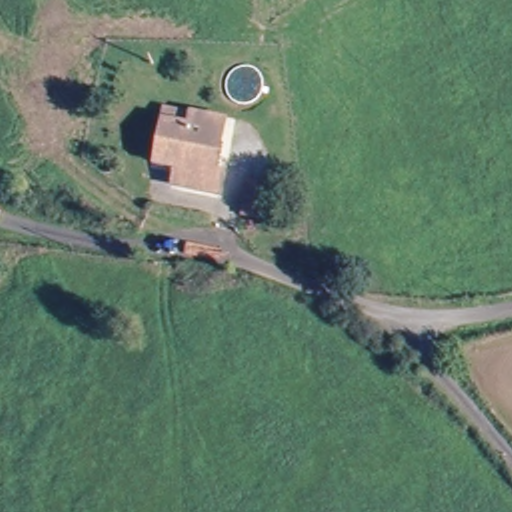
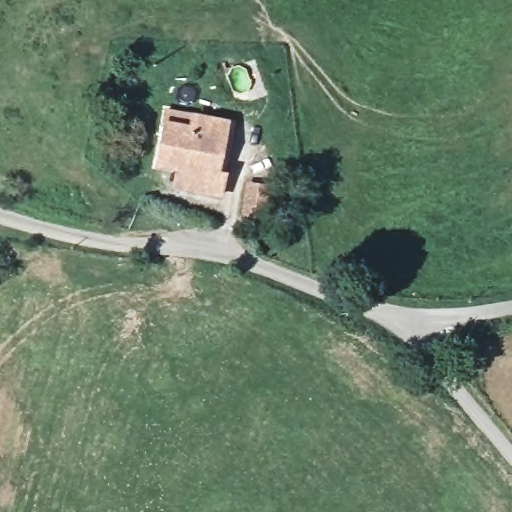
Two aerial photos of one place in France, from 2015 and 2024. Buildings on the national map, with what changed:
unchanged [(227,167),(221,195),(176,186),(180,167),(156,162),(164,131),(166,114),(194,120),(228,126),(220,166),(227,167)]
unchanged [(263,173),(280,176),(274,208),(257,204),(251,203),(257,172),(263,173)]

